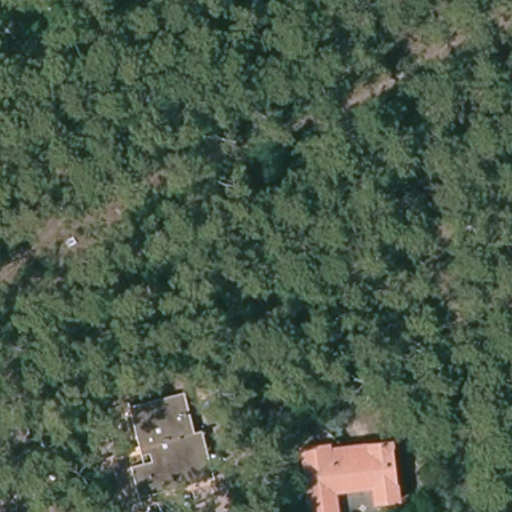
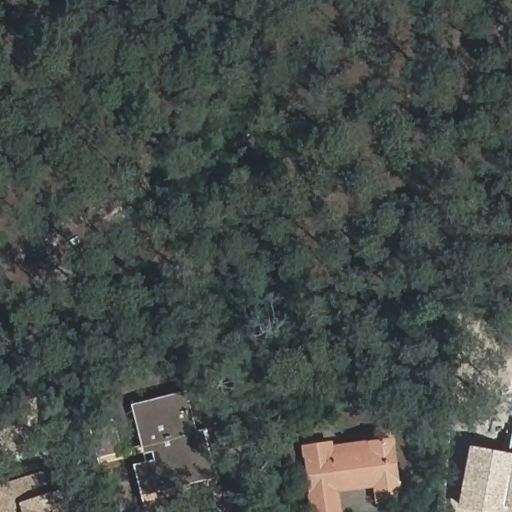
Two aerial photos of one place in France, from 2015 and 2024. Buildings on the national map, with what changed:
unchanged [(207,469),(141,487),(135,460),(156,454),(152,439),(142,442),(132,401),(187,388),(196,425),(207,469)]
new [(32,449),(1,449),(0,400),(32,399),(32,449)]
unchanged [(117,456),(95,462),(85,424),(107,418),(117,456)]
unchanged [(200,484),(144,499),(141,488),(141,487),(207,469),(196,425),(207,423),(221,479),(200,484)]
unchanged [(313,442),(335,442),(335,447),(373,444),(373,439),(398,439),(401,501),(377,502),(377,487),(362,488),(338,488),(339,512),(313,512),(309,442),(313,442)]
new [(508,512),(478,512),(458,508),(470,448),(512,455),(512,510),(508,509),(508,512)]
new [(52,471),(62,491),(69,512),(0,512),(0,485),(52,471)]

